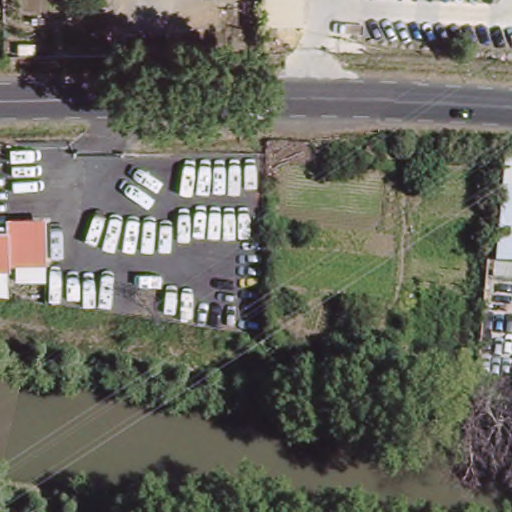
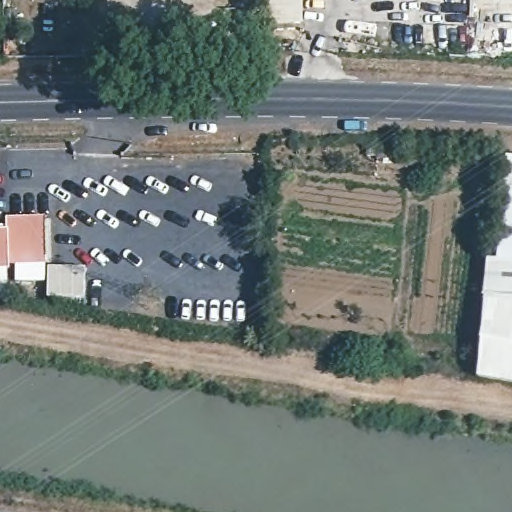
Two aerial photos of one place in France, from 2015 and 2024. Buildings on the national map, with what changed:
unchanged [(263,0),(308,0),(308,22),(265,27),(263,0)]
new [(487,299),(481,298),(485,259),(496,259),(505,157),(512,158),(512,385),(478,380),(487,299)]
demolished [(503,159),(512,160),(512,246),(500,244),(503,159)]
unchanged [(55,225),(55,262),(17,262),(18,269),(0,270),(0,232),(18,232),(18,225),(55,225)]
demolished [(500,244),(512,246),(512,267),(499,266),(500,244)]

